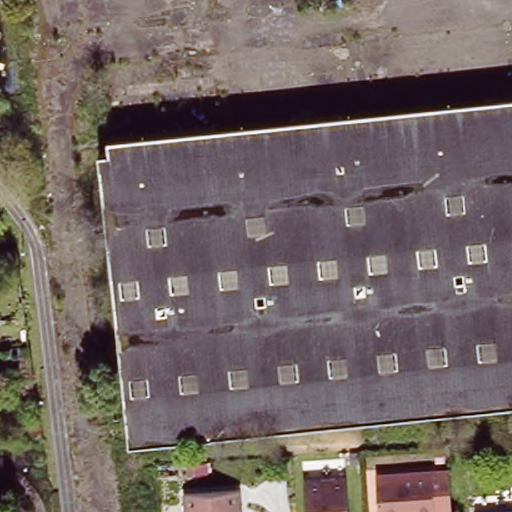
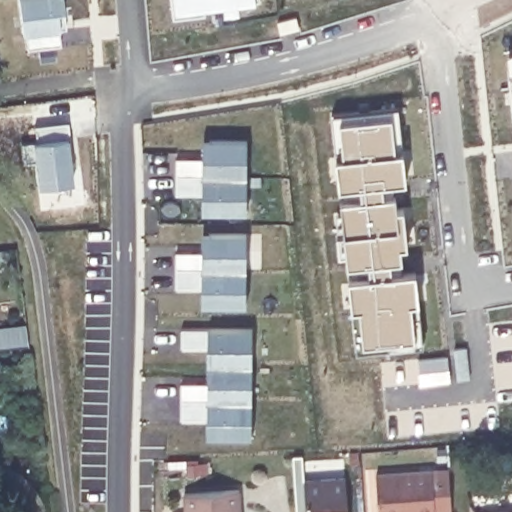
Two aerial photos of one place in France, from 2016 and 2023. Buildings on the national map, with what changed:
demolished [(100,154),(512,112),(512,403),(130,442),(100,154)]
unchanged [(438,512),(382,512),(379,472),(450,467),(454,508),(438,509),(438,512)]
unchanged [(345,472),(348,512),(307,512),(304,476),(345,472)]
unchanged [(245,487),(246,512),(191,512),(190,492),(245,487)]

